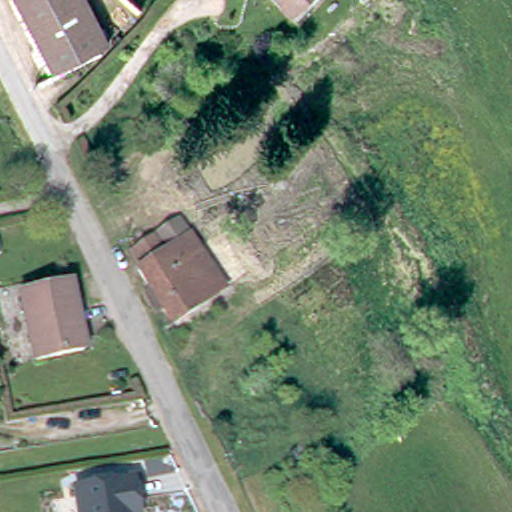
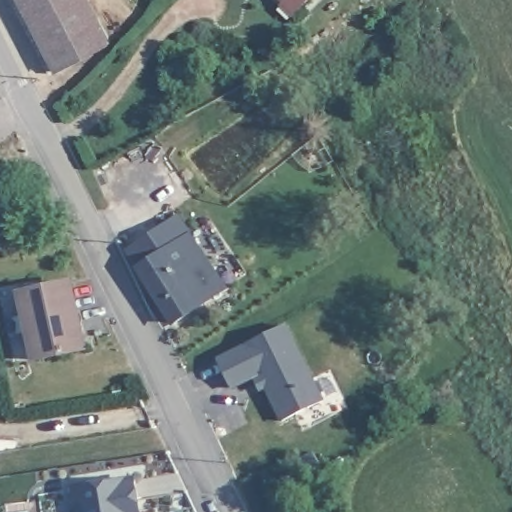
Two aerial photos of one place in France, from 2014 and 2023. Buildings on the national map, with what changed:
unchanged [(0,2),(0,0),(67,0),(94,53),(41,81),(0,2)]
unchanged [(283,5),(284,2),(282,0),(311,0),(304,7),(294,16),(283,5)]
unchanged [(151,290),(138,270),(140,268),(129,252),(159,231),(173,222),(178,219),(186,229),(190,235),(226,288),(209,299),(173,323),(163,307),(157,311),(146,293),(151,290)]
unchanged [(20,295),(70,283),(85,350),(34,361),(20,295)]
new [(231,390),(216,357),(288,325),(324,402),(281,422),(266,390),(259,392),(253,380),(231,390)]
unchanged [(78,488),(133,480),(139,512),(82,512),(80,500),(78,488)]
unchanged [(82,512),(56,512),(54,504),(80,500),(82,512)]

